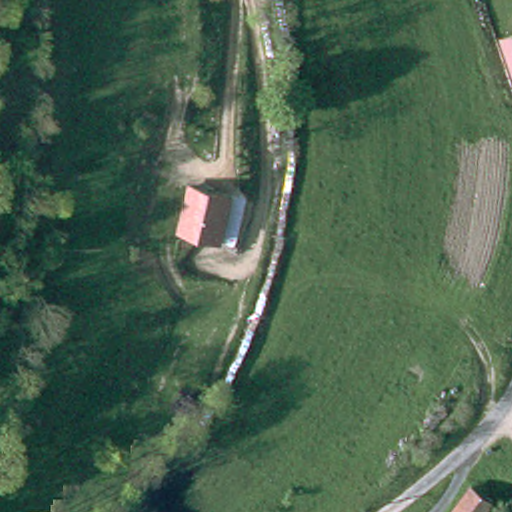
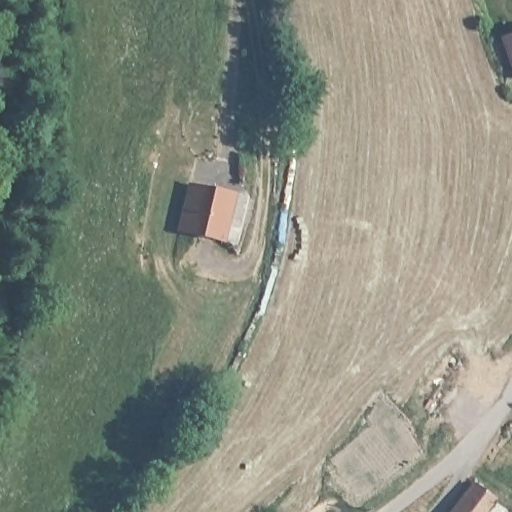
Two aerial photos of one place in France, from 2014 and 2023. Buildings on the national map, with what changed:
unchanged [(512,33),(512,73),(500,36),(512,33)]
unchanged [(226,194),(218,233),(180,226),(188,186),(226,194)]
unchanged [(480,512),(452,512),(470,486),(488,499),(480,512)]

